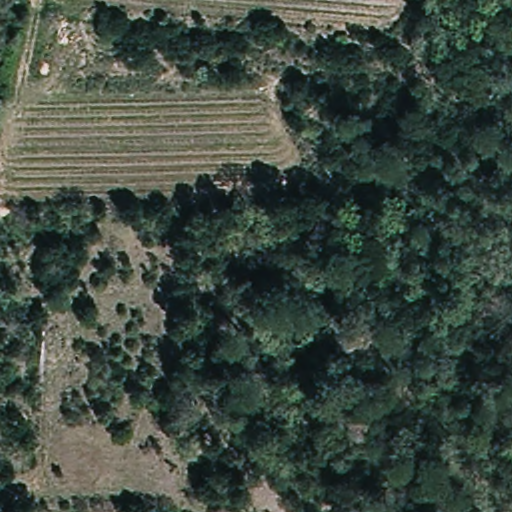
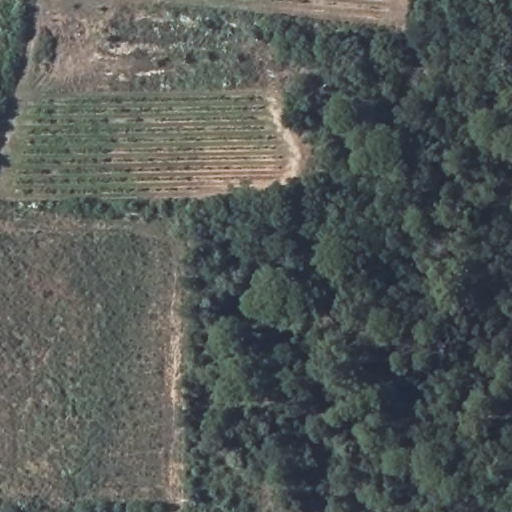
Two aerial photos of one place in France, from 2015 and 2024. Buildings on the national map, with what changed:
[]

